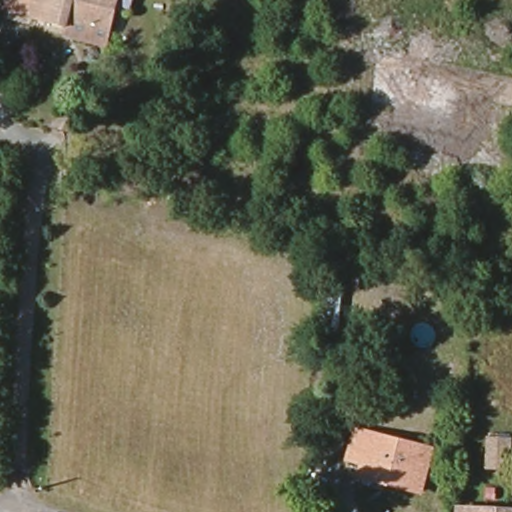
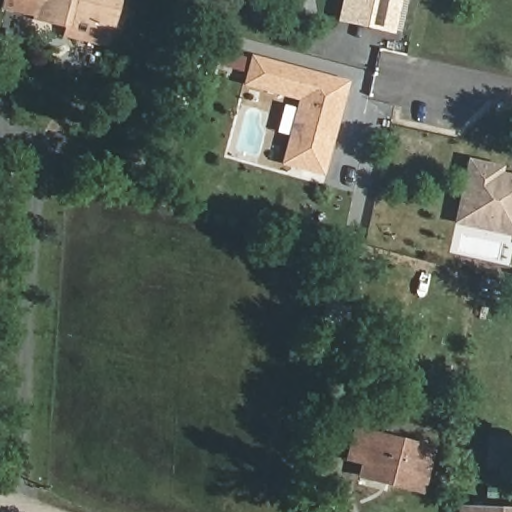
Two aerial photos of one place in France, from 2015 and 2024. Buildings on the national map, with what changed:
unchanged [(65,29),(32,19),(37,0),(118,0),(110,32),(106,49),(64,36),(65,29)]
new [(337,21),(341,0),(400,0),(393,33),(337,21)]
new [(281,164),(297,100),(242,86),(250,55),(348,81),(323,175),(281,164)]
new [(467,158),(503,165),(501,172),(512,174),(512,237),(452,224),(467,158)]
new [(327,297),(343,299),(340,341),(322,340),(327,297)]
unchanged [(417,496),(393,490),(392,484),(370,478),(371,470),(357,466),(362,435),(377,440),(427,454),(417,496)]
unchanged [(461,507),(512,510),(512,512),(461,512),(461,507)]

